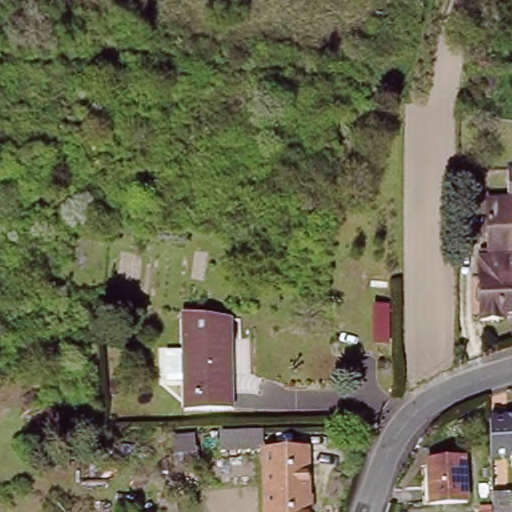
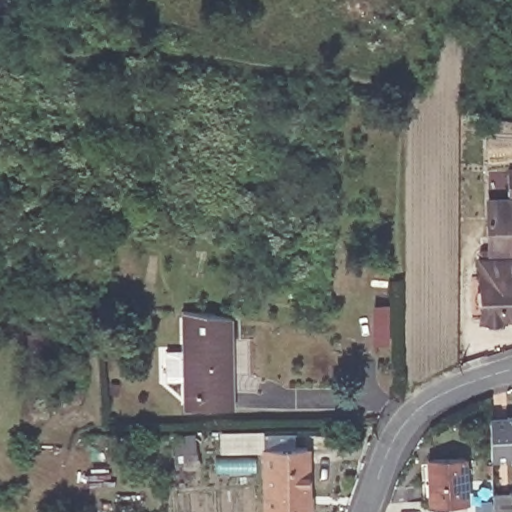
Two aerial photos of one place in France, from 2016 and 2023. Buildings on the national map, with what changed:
unchanged [(501,314),(501,319),(478,319),(476,259),(485,259),(484,211),(504,210),(504,179),(512,179),(512,314),(501,314)]
unchanged [(193,310),(240,317),(238,408),(192,408),(192,375),(177,375),(177,347),(192,347),(193,310)]
unchanged [(512,413),(512,460),(490,461),(489,412),(512,413)]
unchanged [(193,434),(195,450),(175,452),(174,436),(193,434)]
unchanged [(302,453),(306,512),(265,512),(262,454),(302,453)]
unchanged [(472,502),(434,504),(432,460),(470,457),(472,502)]
unchanged [(491,494),(512,493),(512,502),(512,512),(492,512),(491,494)]

